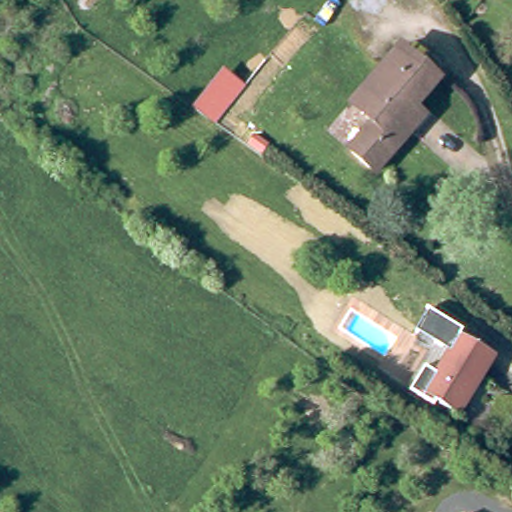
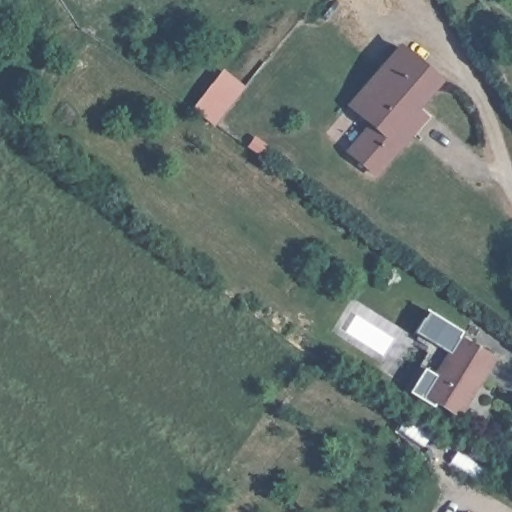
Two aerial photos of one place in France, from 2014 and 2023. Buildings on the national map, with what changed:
unchanged [(410,128),(371,173),(345,151),(368,124),(346,104),(397,47),(435,80),(411,108),(420,116),(410,128)]
unchanged [(200,104),(226,70),(248,85),(221,119),(200,104)]
unchanged [(309,324),(318,314),(344,335),(334,346),(309,324)]
unchanged [(460,414),(425,394),(461,337),(495,356),(460,414)]

